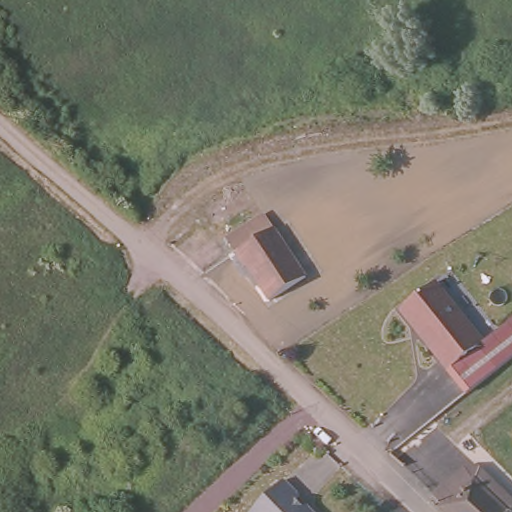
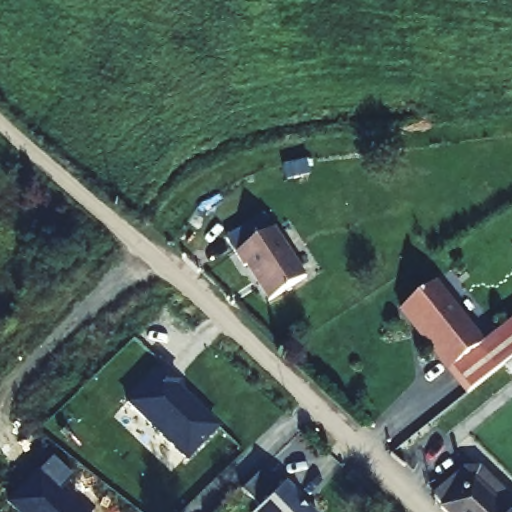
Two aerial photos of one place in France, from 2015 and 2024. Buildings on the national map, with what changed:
unchanged [(304,270),(266,298),(244,268),(240,270),(220,243),(260,213),(304,270)]
unchanged [(480,347),(446,372),(400,311),(432,286),(480,347)]
unchanged [(512,320),(512,361),(468,395),(446,372),(480,347),(512,320)]
new [(124,402),(163,362),(182,380),(177,384),(219,425),(185,460),(124,402)]
new [(58,490),(81,512),(15,512),(5,503),(50,457),(71,477),(58,490)]
unchanged [(465,467),(482,467),(512,496),(512,512),(442,512),(439,509),(442,505),(432,495),(465,467)]
unchanged [(285,480),(300,493),(294,503),(297,507),(307,504),(316,512),(255,512),(285,480)]

